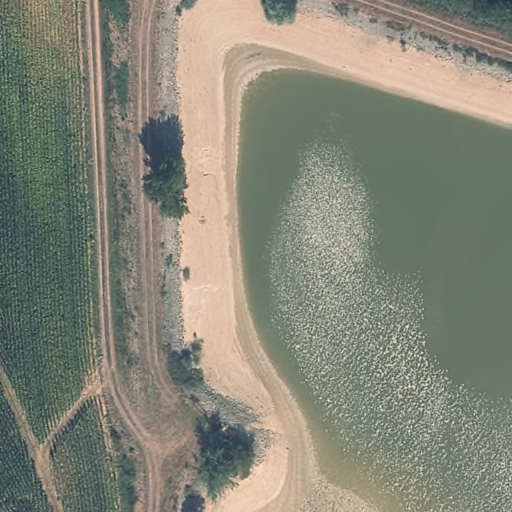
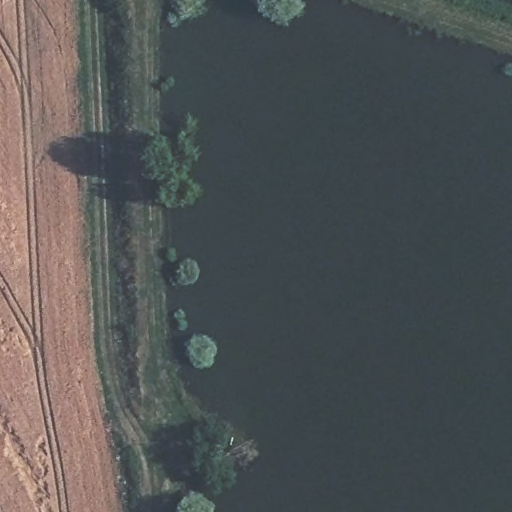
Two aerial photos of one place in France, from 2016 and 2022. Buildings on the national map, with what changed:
unchanged [(233,441),(228,459),(220,459),(212,455),(214,446),(218,435),(233,441)]

